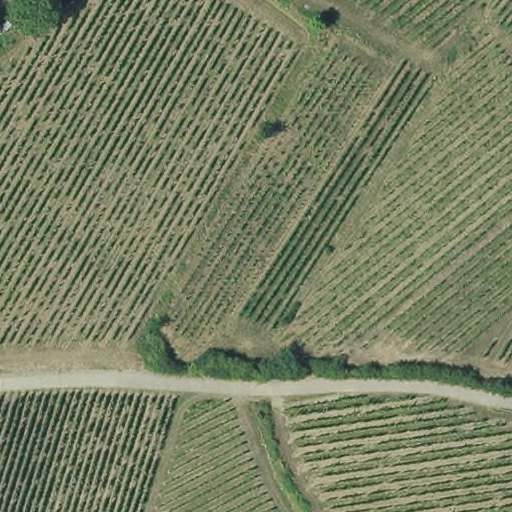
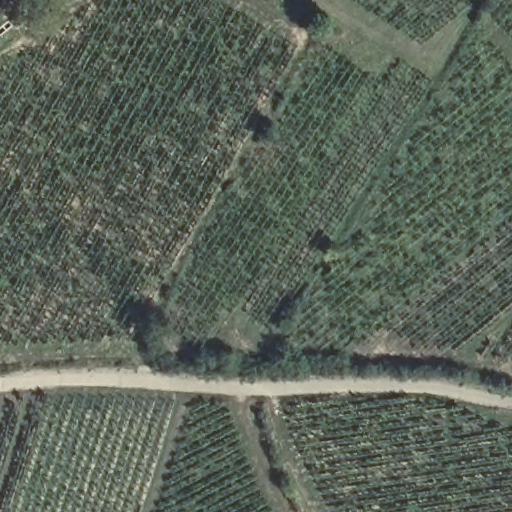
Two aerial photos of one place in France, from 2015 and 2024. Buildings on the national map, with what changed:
unchanged [(0,31),(0,22),(3,20),(7,25),(0,31)]

